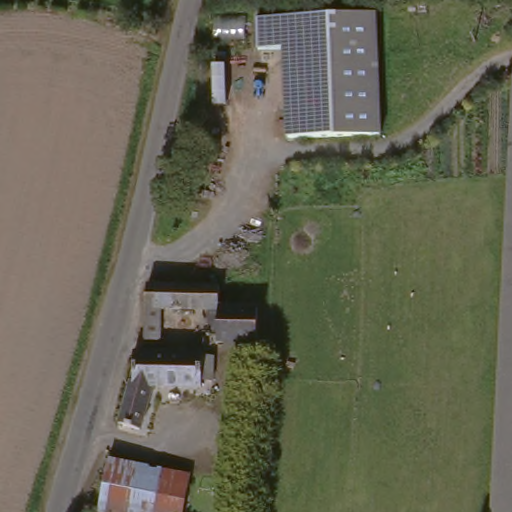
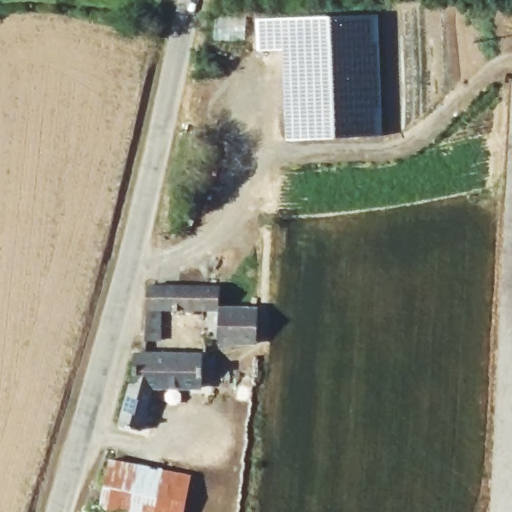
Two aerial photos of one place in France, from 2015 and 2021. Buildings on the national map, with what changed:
unchanged [(286,140),(278,50),(254,50),(251,21),(371,15),(378,137),(286,140)]
unchanged [(512,80),(512,512),(489,512),(511,80),(512,80)]
unchanged [(223,279),(223,300),(261,301),(261,336),(221,336),(221,332),(211,332),(213,303),(164,303),(163,334),(148,334),(151,278),(223,279)]
unchanged [(204,351),(204,355),(216,355),(216,379),(204,378),(206,385),(156,385),(144,428),(122,422),(133,381),(136,381),(138,352),(147,353),(204,351)]
unchanged [(116,463),(198,479),(192,512),(108,512),(116,463)]

